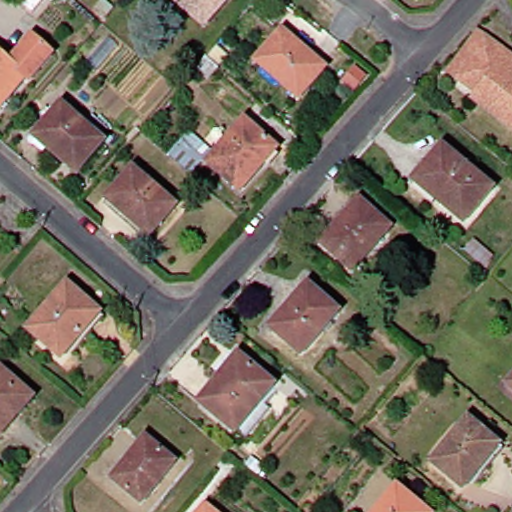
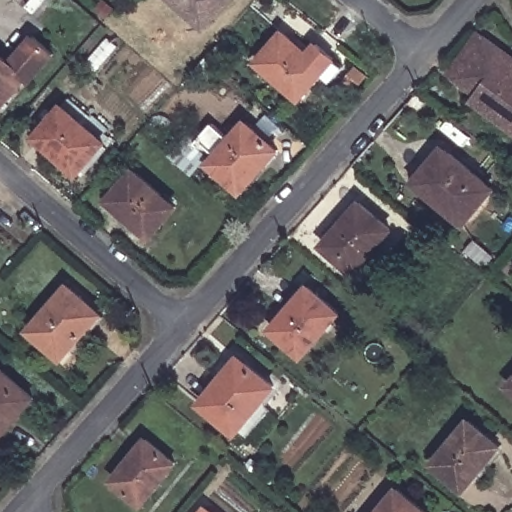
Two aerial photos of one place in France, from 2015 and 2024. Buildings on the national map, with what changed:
unchanged [(180,0),(233,0),(210,26),(180,0)]
unchanged [(293,28),(312,45),(310,47),(332,66),(309,94),(267,56),(293,28)]
unchanged [(482,95),(460,79),(453,74),(484,32),(491,37),(512,53),(512,126),(477,101),(482,95)]
unchanged [(15,64),(38,36),(58,54),(35,81),(32,78),(6,108),(0,102),(0,51),(15,64)]
unchanged [(110,142),(82,174),(40,138),(67,106),(110,142)]
unchanged [(282,151),(246,191),(215,164),(250,123),(282,151)]
unchanged [(437,200),(441,196),(420,178),(444,149),(492,190),(465,223),(437,200)]
unchanged [(175,207),(150,237),(131,220),(133,218),(110,198),(134,171),(175,207)]
unchanged [(323,247),(340,226),(343,228),(363,205),(392,230),(353,273),(323,247)]
unchanged [(87,336),(83,332),(61,357),(30,330),(68,286),(97,311),(103,317),(87,336)]
unchanged [(277,329),(293,310),(296,312),(316,289),(344,314),(307,356),(277,329)]
unchanged [(283,387),(245,432),(212,404),(250,358),(283,387)]
unchanged [(4,369),(38,398),(4,437),(0,434),(0,373),(4,369)]
unchanged [(475,421),(503,445),(483,469),(486,471),(470,491),(438,465),(475,421)]
unchanged [(119,481),(152,441),(180,464),(147,504),(119,481)]
unchanged [(432,512),(383,512),(402,488),(432,512)]
unchanged [(212,509),(216,512),(209,512),(212,509)]

